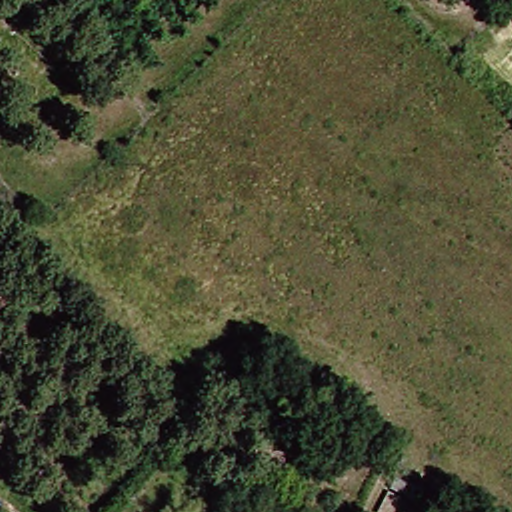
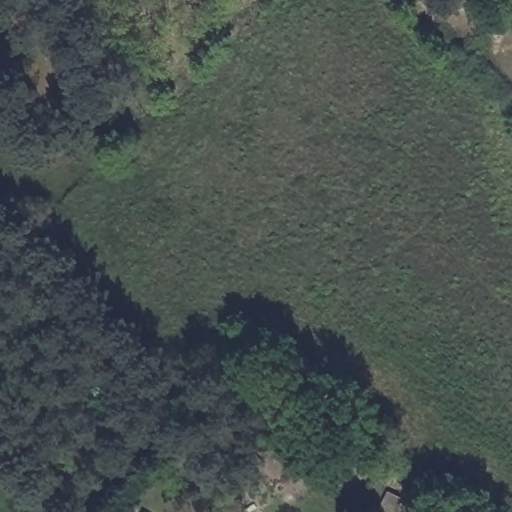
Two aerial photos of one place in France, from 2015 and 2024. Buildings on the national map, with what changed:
[]

